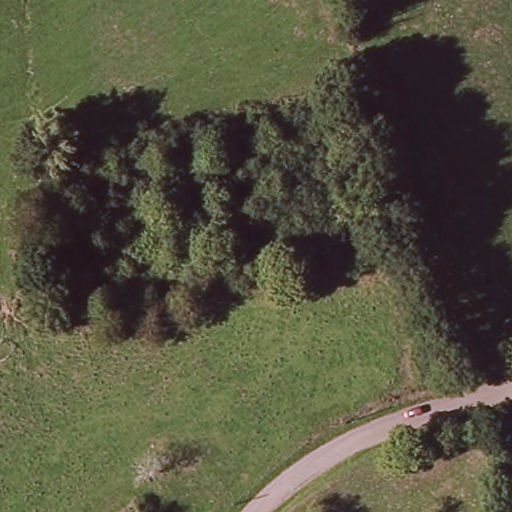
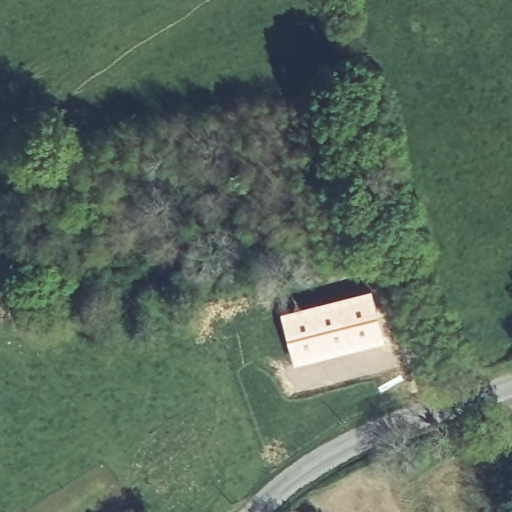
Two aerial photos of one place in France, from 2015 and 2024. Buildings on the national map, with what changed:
new [(373,287),(386,341),(294,365),(280,310),(373,287)]

